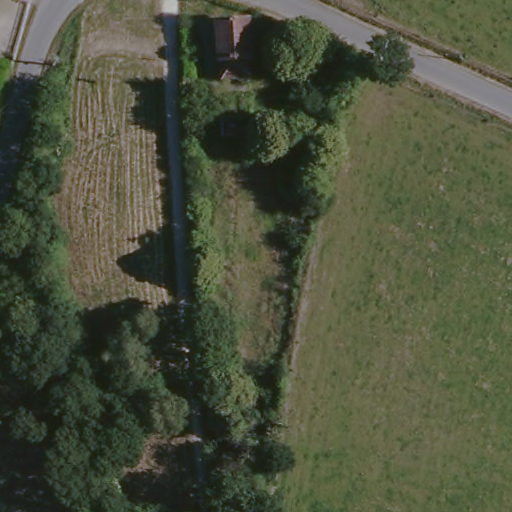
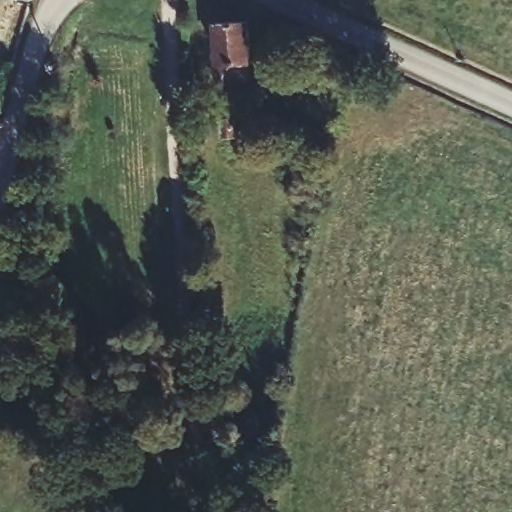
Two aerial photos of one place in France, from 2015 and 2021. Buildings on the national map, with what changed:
unchanged [(39,1),(34,0),(39,0),(39,1)]
unchanged [(259,54),(257,55),(258,74),(232,76),(231,59),(227,59),(224,21),(256,20),(259,54)]
unchanged [(226,112),(240,111),(241,125),(227,125),(226,112)]

